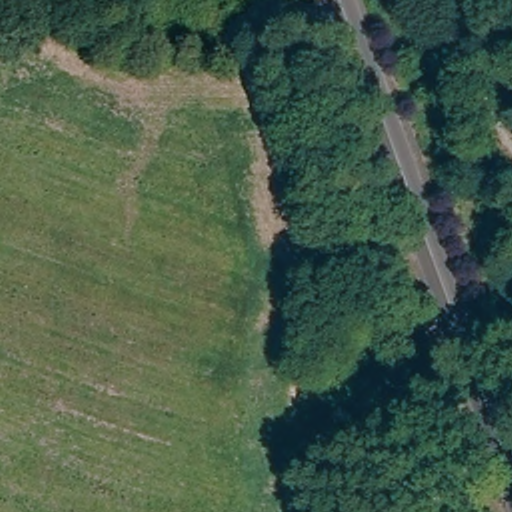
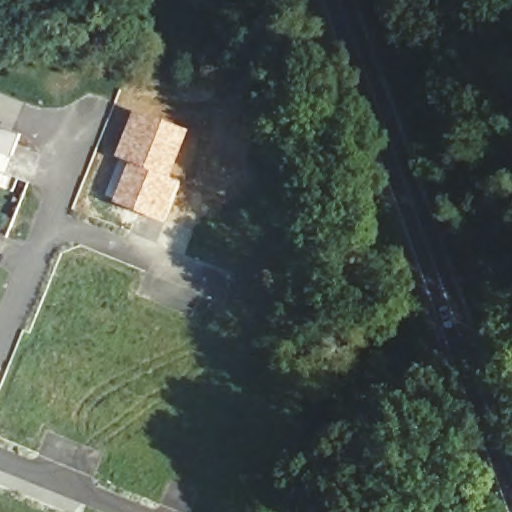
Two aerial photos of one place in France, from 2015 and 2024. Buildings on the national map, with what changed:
new [(135,107),(191,130),(172,177),(128,162),(114,156),(135,107)]
new [(13,157),(0,152),(0,126),(22,135),(13,157)]
new [(128,162),(172,177),(182,181),(165,225),(112,202),(128,162)]

